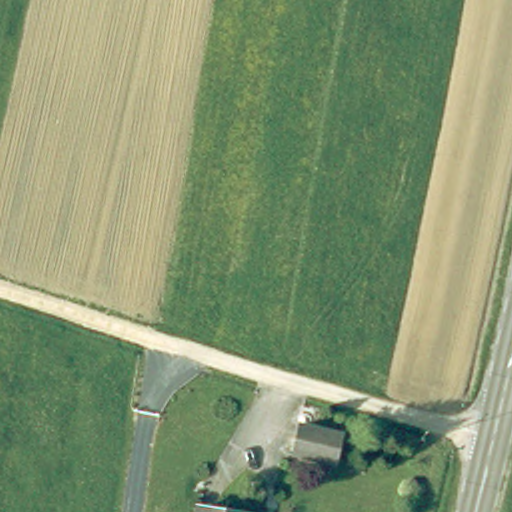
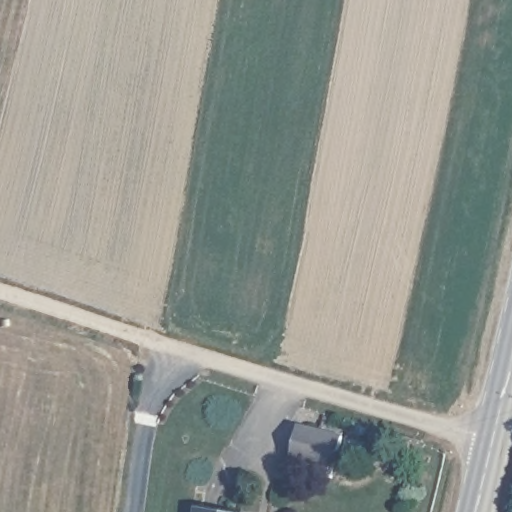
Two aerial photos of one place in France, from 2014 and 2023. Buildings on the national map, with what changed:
unchanged [(288,453),(292,428),(334,435),(330,460),(288,453)]
unchanged [(249,511),(249,512),(198,512),(199,504),(249,511)]

